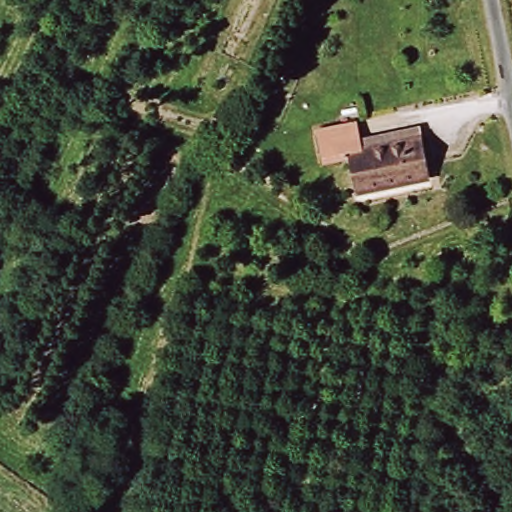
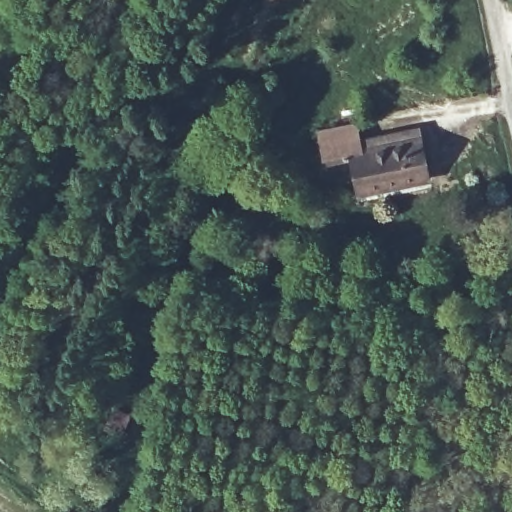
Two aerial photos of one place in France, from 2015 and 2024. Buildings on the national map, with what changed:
unchanged [(350,195),(344,161),(317,166),(312,133),(351,126),(354,141),(355,141),(358,140),(395,134),(416,130),(416,131),(418,141),(425,182),(350,195)]

